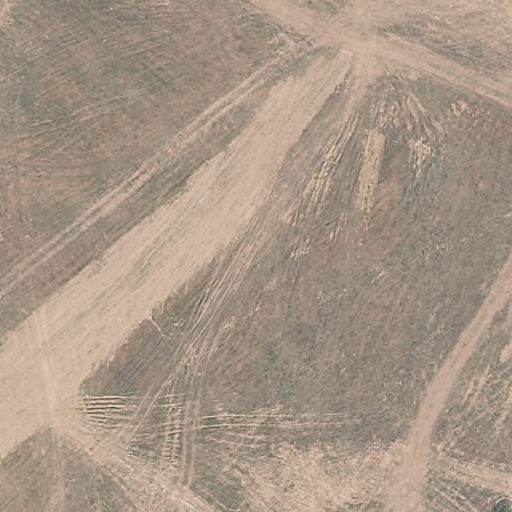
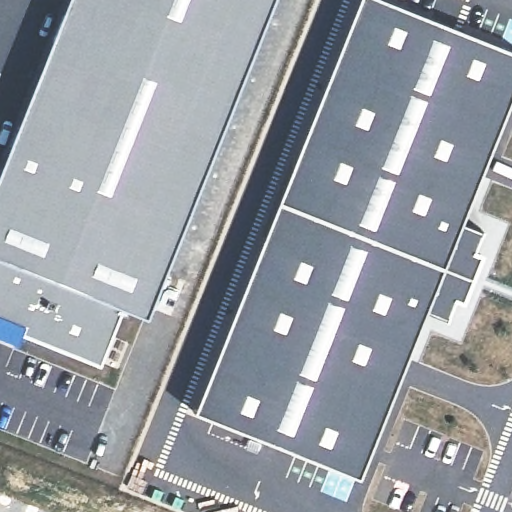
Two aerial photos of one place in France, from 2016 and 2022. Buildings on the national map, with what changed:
new [(270,0),(144,315),(117,305),(99,365),(21,335),(18,343),(0,337),(0,161),(64,0),(270,0)]
new [(458,220),(482,230),(473,250),(482,253),(463,301),(453,297),(446,320),(423,310),(357,475),(191,410),(356,0),(382,0),(512,52),(512,88),(458,220)]

